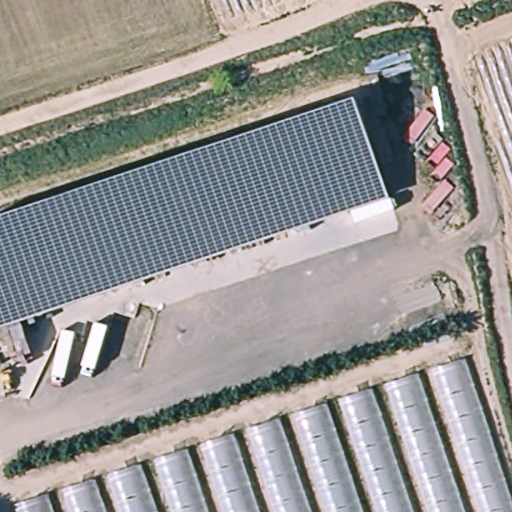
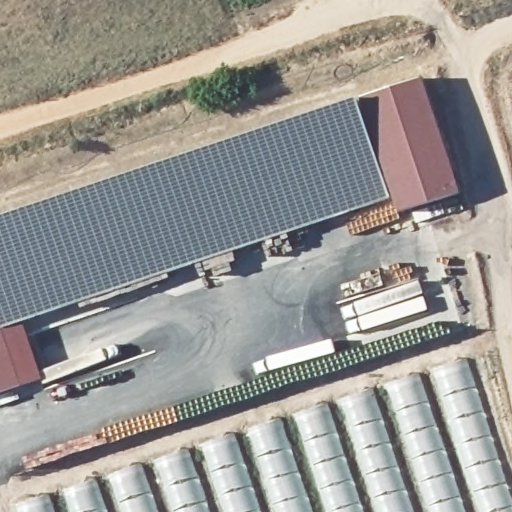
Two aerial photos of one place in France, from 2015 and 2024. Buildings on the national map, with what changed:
new [(422,77),(458,191),(397,211),(391,195),(355,97),(422,77)]
unchanged [(391,195),(0,325),(0,215),(355,97),(391,195)]
new [(42,380),(22,386),(0,393),(0,325),(20,318),(42,380)]
unchanged [(21,502),(467,357),(512,486),(512,512),(24,512),(21,502)]

